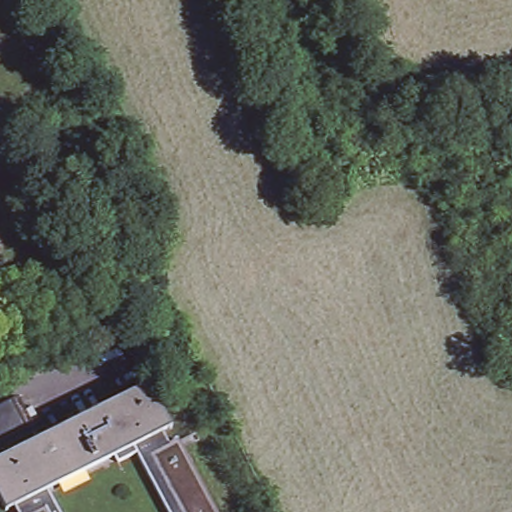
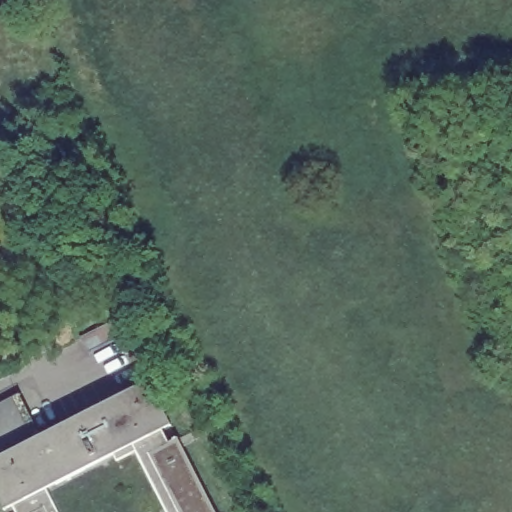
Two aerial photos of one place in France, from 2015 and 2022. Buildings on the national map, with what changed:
unchanged [(91,356),(82,339),(120,319),(128,336),(91,356)]
unchanged [(0,461),(10,455),(42,438),(148,383),(215,512),(170,512),(140,453),(122,463),(117,456),(52,490),(63,512),(6,512),(0,501),(0,461)]

